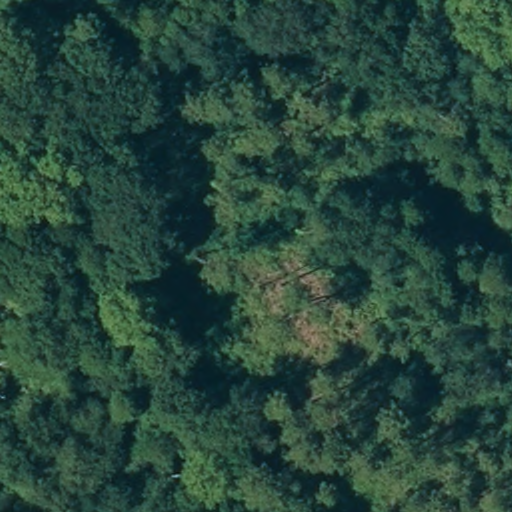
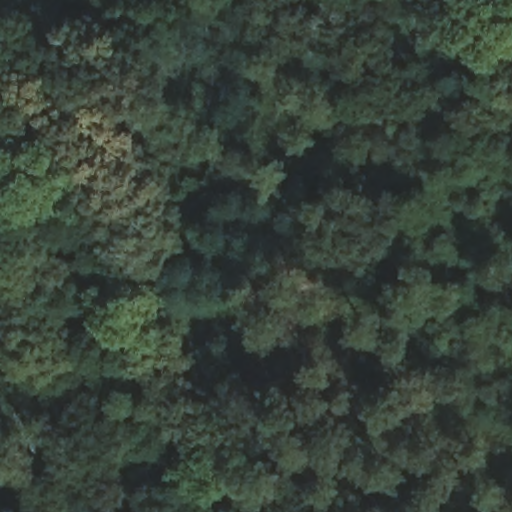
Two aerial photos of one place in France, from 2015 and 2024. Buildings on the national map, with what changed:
[]

